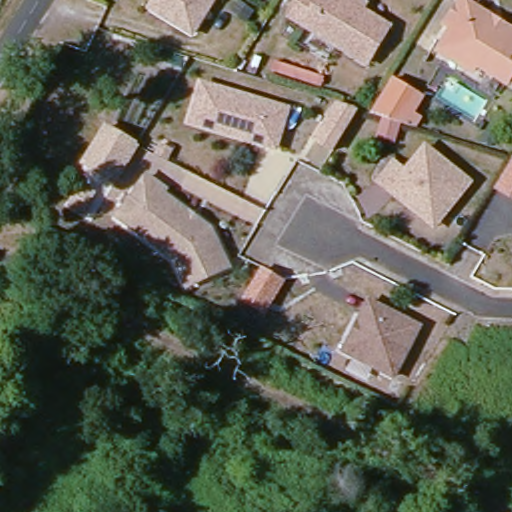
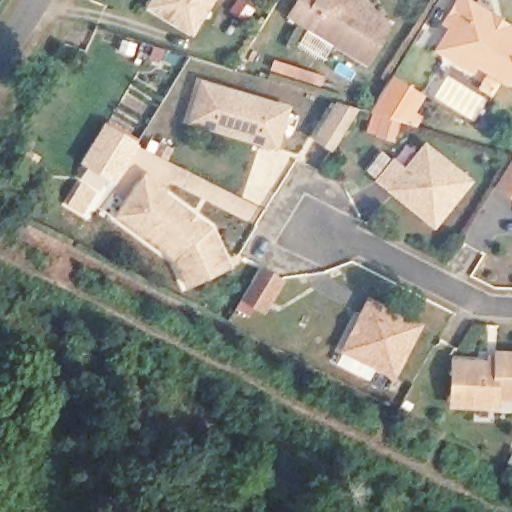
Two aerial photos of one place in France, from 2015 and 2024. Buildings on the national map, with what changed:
unchanged [(150,6),(154,0),(213,0),(192,32),(150,6)]
unchanged [(366,68),(289,21),(302,0),(354,0),(366,7),(363,13),(390,30),(366,68)]
unchanged [(438,45),(447,31),(452,22),(446,18),(457,0),(475,0),(512,23),(512,74),(509,72),(506,77),(476,59),(472,65),(465,61),(438,45)]
unchanged [(383,116),(370,112),(390,78),(408,88),(420,96),(415,106),(411,112),(418,117),(413,125),(405,122),(401,121),(395,139),(378,134),(383,116)]
unchanged [(191,117),(202,82),(288,108),(276,147),(219,130),(190,121),(191,117)]
unchanged [(358,108),(333,149),(316,138),(338,102),(358,108)]
unchanged [(136,144),(114,180),(92,166),(84,162),(107,125),(136,144)]
unchanged [(430,145),(471,177),(448,206),(427,209),(398,186),(410,170),(430,145)]
unchanged [(398,186),(427,209),(448,206),(471,177),(475,181),(440,225),(383,180),(398,161),(410,170),(398,186)]
unchanged [(163,192),(211,228),(228,266),(186,285),(174,259),(116,215),(147,174),(166,188),(163,192)]
unchanged [(82,212),(69,204),(81,183),(94,191),(82,212)]
new [(242,302),(261,266),(286,280),(267,314),(242,302)]
unchanged [(394,376),(343,350),(369,299),(420,325),(411,343),(405,353),(394,376)]
new [(497,409),(450,407),(451,360),(493,361),(494,349),(512,350),(512,400),(497,399),(497,409)]

